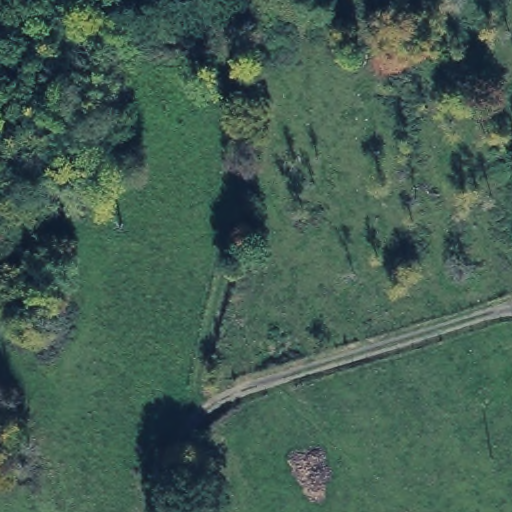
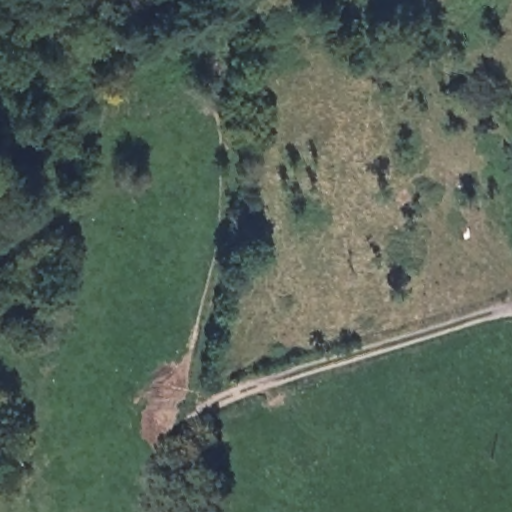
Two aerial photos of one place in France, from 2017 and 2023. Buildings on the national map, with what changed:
[]

